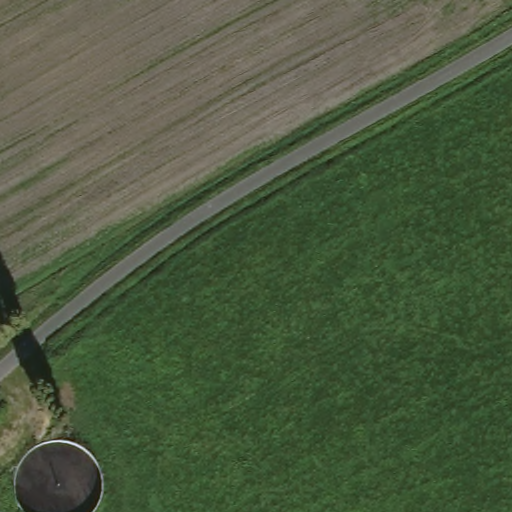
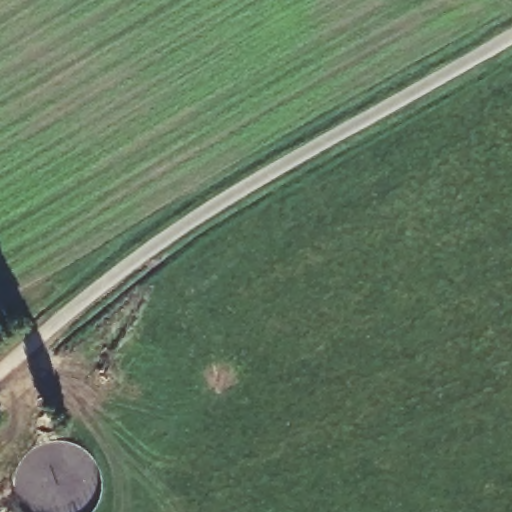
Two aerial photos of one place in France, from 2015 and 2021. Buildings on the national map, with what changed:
unchanged [(51,420),(0,464),(0,439),(39,405),(51,420)]

